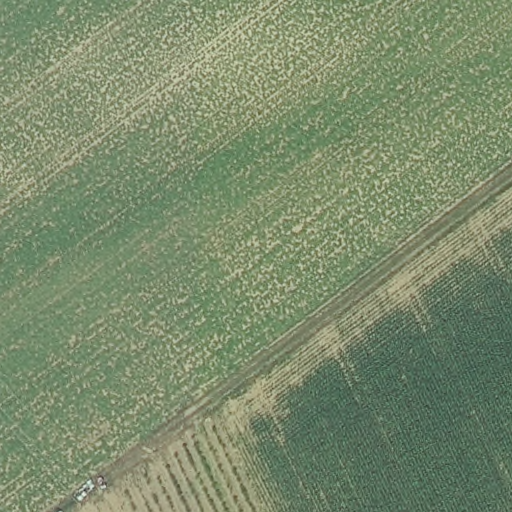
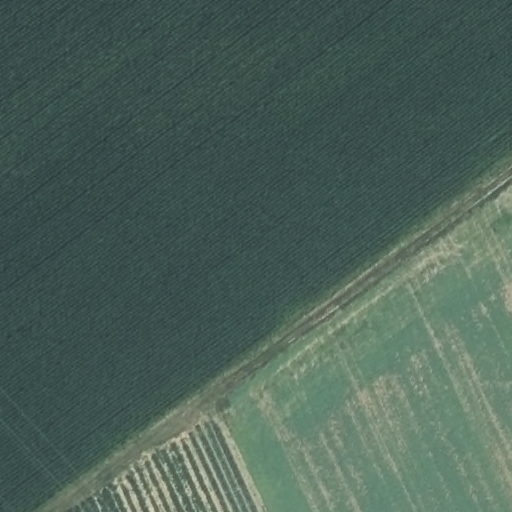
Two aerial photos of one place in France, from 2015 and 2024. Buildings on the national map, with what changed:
[]

